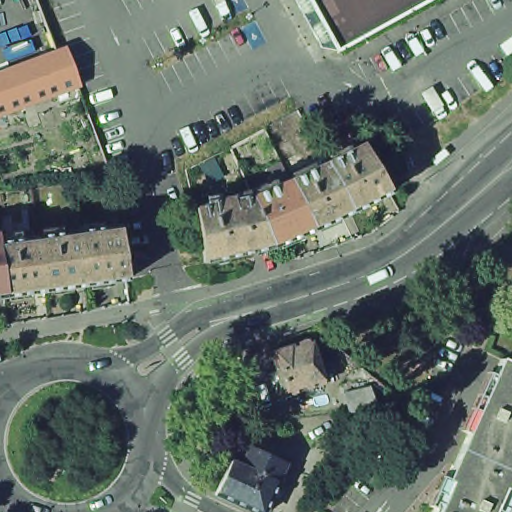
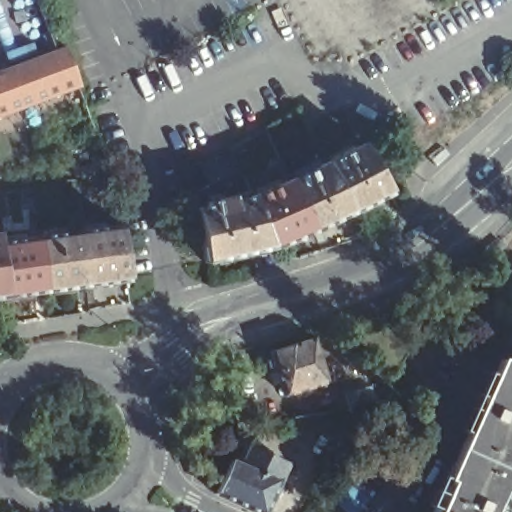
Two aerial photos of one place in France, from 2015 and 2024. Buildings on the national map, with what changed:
demolished [(313,0),(420,0),(338,45),(327,25),(327,26),(313,0)]
demolished [(348,62),(321,55),(338,45),(348,62)]
unchanged [(56,51),(65,48),(78,84),(0,113),(0,72),(2,71),(56,51)]
unchanged [(356,144),(358,143),(384,192),(384,193),(346,212),(321,162),(356,144)]
unchanged [(321,162),(346,212),(307,230),(284,180),(321,162)]
unchanged [(284,180),(307,230),(269,247),(246,196),(284,180)]
unchanged [(201,206),(201,203),(227,197),(228,200),(246,196),(269,247),(199,263),(189,208),(201,206)]
unchanged [(118,225),(119,225),(123,253),(128,279),(126,280),(85,285),(78,231),(118,225)]
unchanged [(78,231),(85,285),(44,291),(37,237),(78,231)]
unchanged [(0,242),(37,237),(44,291),(4,296),(0,268),(0,242)]
unchanged [(0,297),(0,268),(4,296),(0,297)]
unchanged [(270,352),(313,338),(327,381),(284,395),(270,352)]
unchanged [(512,364),(512,476),(496,512),(432,512),(499,358),(512,364)]
unchanged [(347,392),(374,389),(378,408),(349,412),(347,392)]
unchanged [(220,499),(236,464),(246,469),(254,451),(291,467),(290,468),(291,468),(271,512),(249,512),(220,499)]

